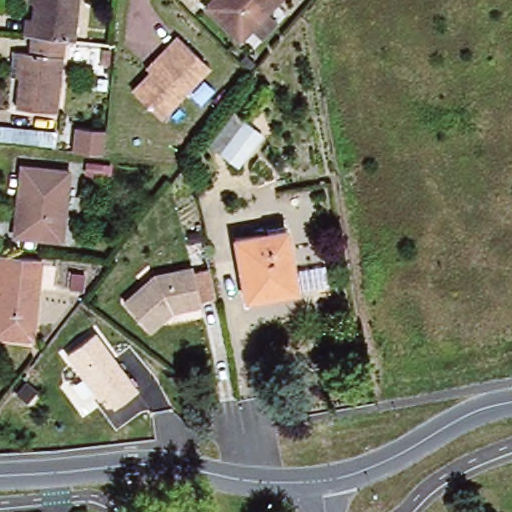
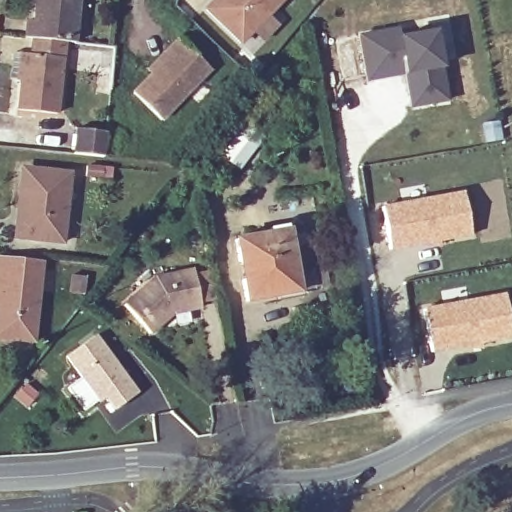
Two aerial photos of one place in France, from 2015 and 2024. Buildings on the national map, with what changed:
unchanged [(23,20),(29,21),(31,0),(75,0),(71,41),(63,41),(30,37),(21,36),(23,20)]
unchanged [(242,44),(208,13),(220,0),(223,1),(224,0),(285,0),(242,44)]
new [(429,24),(443,101),(407,108),(401,75),(364,81),(356,37),(429,24)]
unchanged [(63,41),(56,110),(17,106),(22,50),(28,50),(30,37),(63,41)]
unchanged [(209,63),(163,117),(135,92),(166,56),(162,50),(176,37),(209,63)]
unchanged [(240,171),(214,151),(236,118),(263,138),(240,171)]
new [(76,132),(106,134),(103,159),(73,157),(76,132)]
unchanged [(62,244),(10,238),(12,222),(19,222),(24,174),(67,178),(62,244)]
new [(398,207),(395,193),(419,187),(422,202),(459,195),(467,237),(387,253),(378,211),(398,207)]
unchanged [(244,297),(236,239),(287,231),(297,290),(244,297)]
unchanged [(29,343),(0,340),(0,260),(37,263),(29,343)]
unchanged [(152,278),(193,271),(203,308),(175,315),(148,338),(119,305),(152,278)]
new [(440,308),(437,292),(460,288),(463,302),(500,295),(509,336),(428,353),(419,311),(440,308)]
unchanged [(95,333),(139,392),(113,411),(103,396),(95,400),(65,355),(95,333)]

